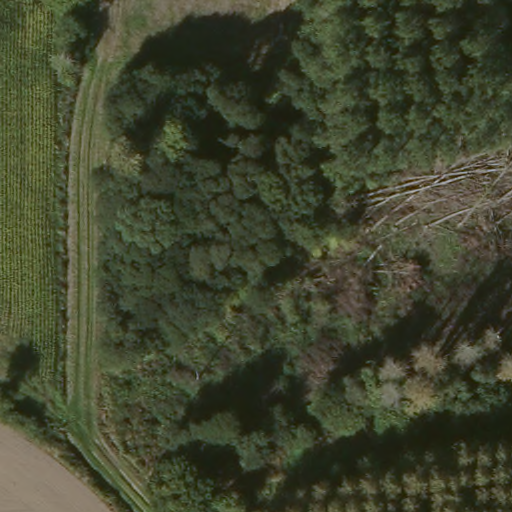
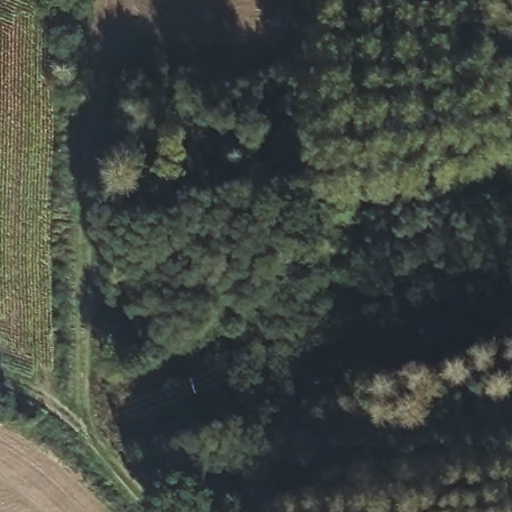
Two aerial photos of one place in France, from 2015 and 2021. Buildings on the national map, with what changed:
[]

